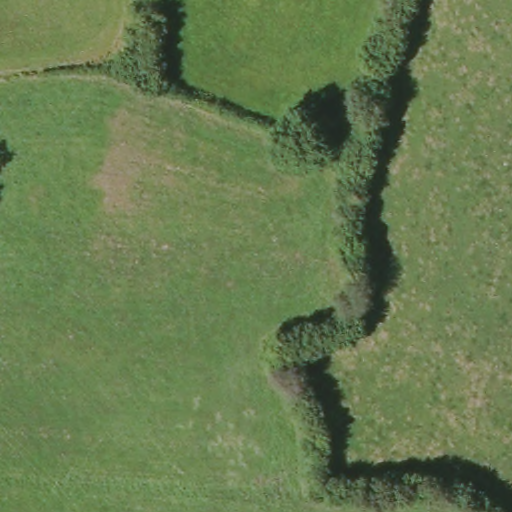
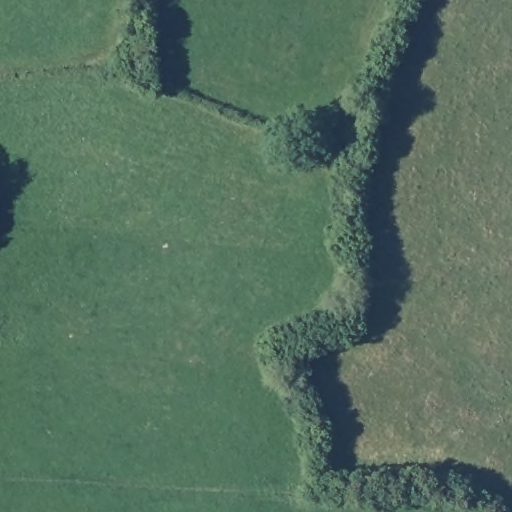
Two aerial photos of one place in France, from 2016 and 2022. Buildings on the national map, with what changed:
[]

